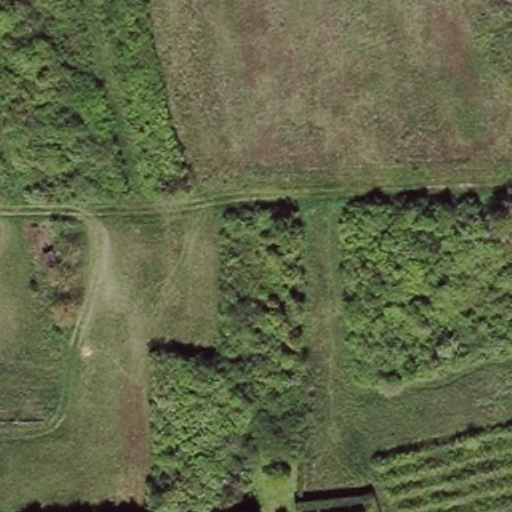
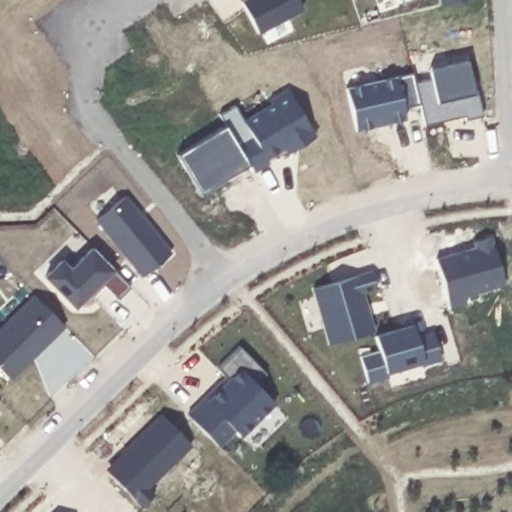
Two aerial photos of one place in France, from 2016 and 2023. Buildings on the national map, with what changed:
new [(295,0),(300,10),(257,34),(240,2),(243,0),(295,0)]
new [(437,0),(461,0),(440,5),(437,0)]
new [(427,70),(446,66),(466,61),(472,85),(475,85),(482,117),(465,121),(464,117),(423,126),(418,105),(413,83),(430,79),(427,70)]
new [(411,73),(413,83),(418,105),(402,108),(405,120),(387,124),(386,121),(374,124),(375,127),(355,132),(345,89),(411,73)]
new [(284,148),(266,158),(268,162),(252,172),(248,165),(225,126),(219,115),(234,106),(243,122),(270,105),(269,102),(287,91),(315,137),(297,148),(287,154),(284,148)]
new [(225,126),(248,165),(216,184),(219,188),(201,198),(176,155),(225,126)]
new [(125,196),(171,253),(142,277),(97,220),(125,196)]
new [(474,248),(473,243),(489,238),(502,285),(462,296),(465,305),(449,310),(435,259),(474,248)]
new [(61,261),(70,270),(92,248),(130,288),(118,300),(104,285),(92,297),(89,294),(75,307),(45,276),(61,261)]
new [(370,272),(375,289),(361,293),(365,307),(362,307),(365,316),(367,315),(372,331),(328,344),(312,289),(370,272)]
new [(64,327),(10,379),(0,369),(0,329),(34,296),(64,327)]
new [(377,351),(374,336),(412,326),(415,338),(432,333),(440,359),(422,365),(420,362),(385,373),(386,377),(366,383),(359,357),(377,351)]
new [(225,378),(216,369),(239,347),(265,374),(255,384),(273,404),(240,437),(234,431),(217,447),(187,415),(204,399),(225,378)]

